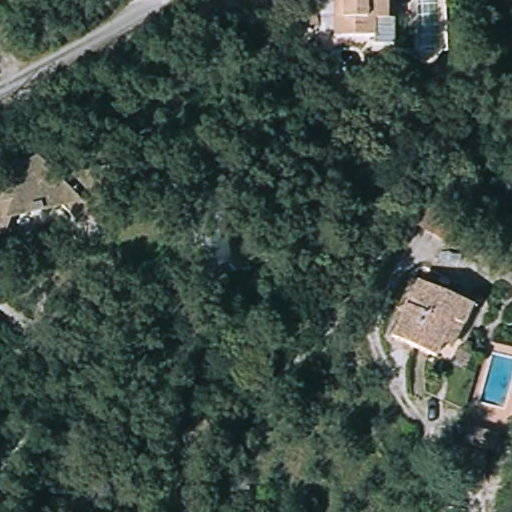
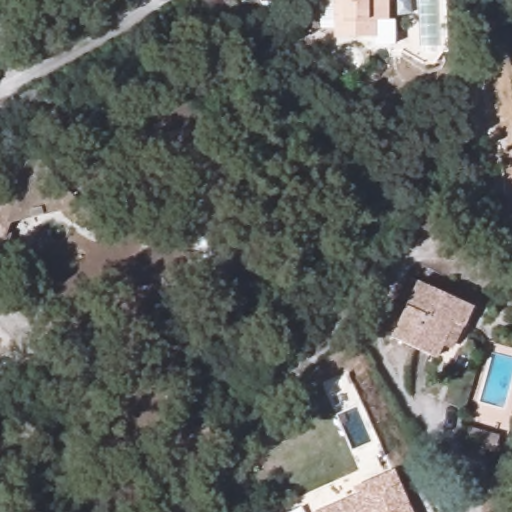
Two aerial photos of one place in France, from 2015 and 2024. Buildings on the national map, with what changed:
unchanged [(396,17),(398,44),(375,44),(375,34),(337,36),(337,0),(392,0),(393,17),(396,17)]
unchanged [(17,163),(41,157),(62,180),(121,166),(103,219),(85,224),(66,204),(14,217),(5,243),(22,261),(0,266),(0,203),(5,202),(17,163)]
unchanged [(447,345),(441,358),(394,337),(421,277),(479,303),(458,350),(447,345)]
unchanged [(465,445),(470,427),(500,436),(494,453),(465,445)]
unchanged [(200,475),(190,454),(225,440),(235,458),(200,475)]
new [(355,495),(353,488),(393,470),(412,512),(317,512),(355,495)]

